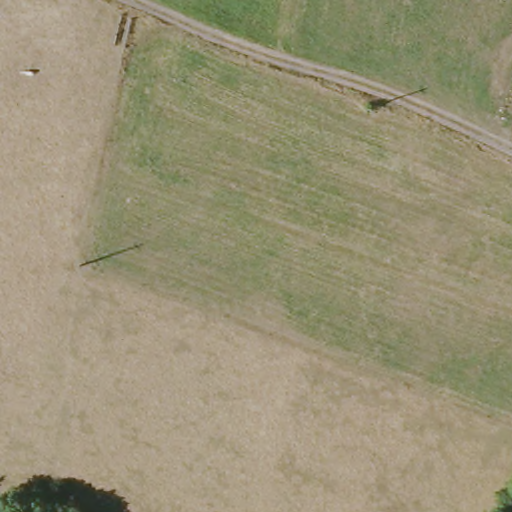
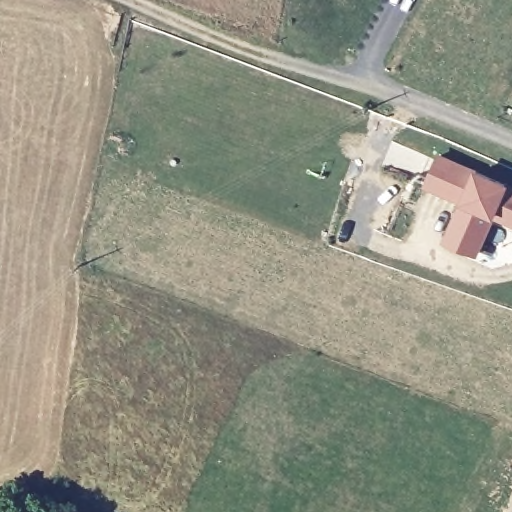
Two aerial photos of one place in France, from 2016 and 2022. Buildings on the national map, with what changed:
new [(475,168),(507,183),(512,185),(512,226),(495,219),(479,258),(445,244),(460,202),(425,185),(440,155),(475,168)]

